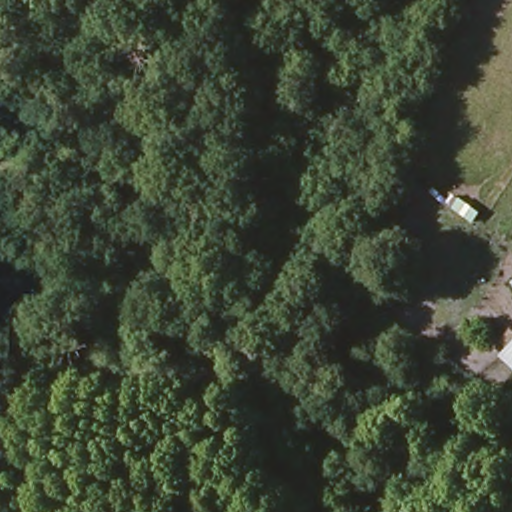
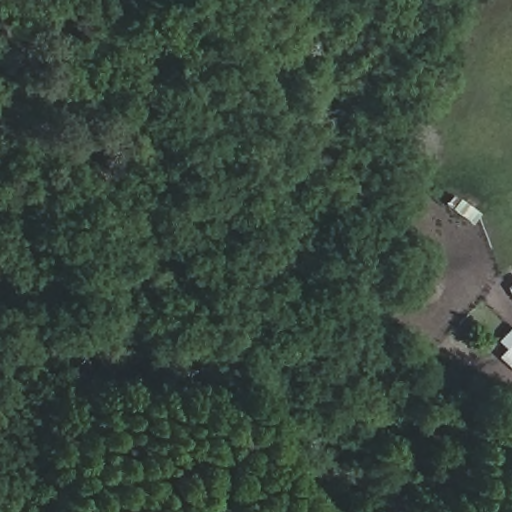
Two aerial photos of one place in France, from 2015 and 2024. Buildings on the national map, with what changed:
unchanged [(512,352),(500,341),(510,330),(512,332),(512,352)]

